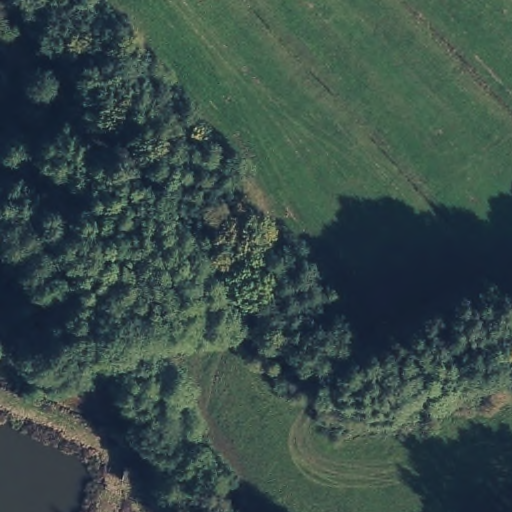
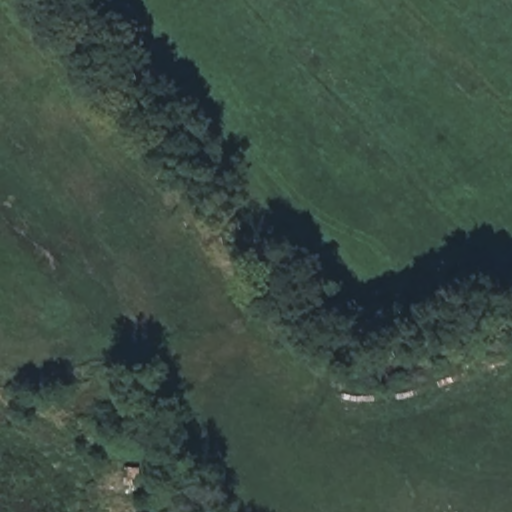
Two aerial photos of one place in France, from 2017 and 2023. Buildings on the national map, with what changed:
unchanged [(143,467),(138,485),(122,481),(127,461),(143,467)]

